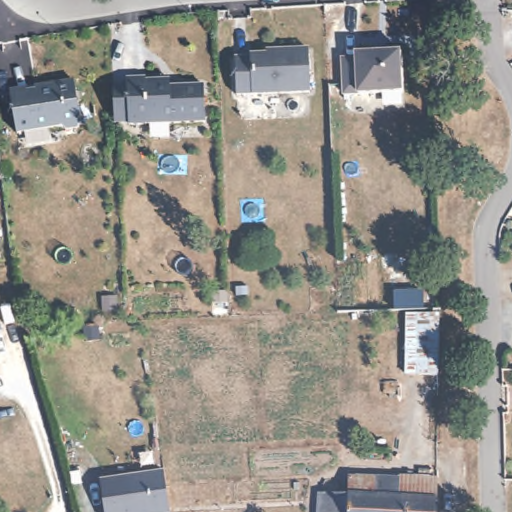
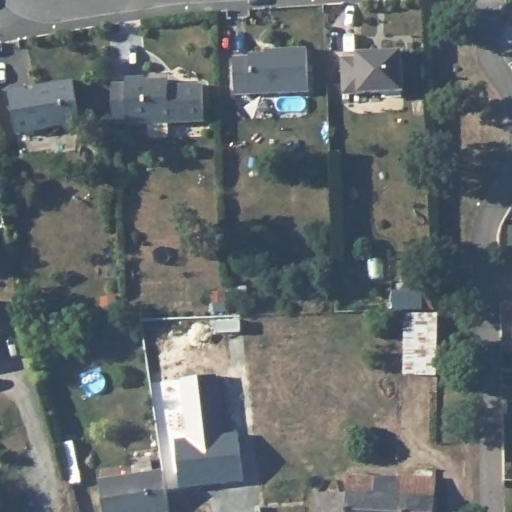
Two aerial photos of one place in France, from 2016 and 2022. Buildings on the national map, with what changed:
unchanged [(280,48),(280,45),(311,43),(314,86),(276,89),(276,88),(240,90),(238,53),(253,51),(252,50),(280,48)]
unchanged [(405,46),(407,87),(347,90),(346,53),(361,52),(360,49),(405,46)]
unchanged [(130,75),(149,74),(149,78),(166,77),(166,80),(173,80),(173,84),(207,83),(208,119),(132,123),(132,119),(118,119),(117,81),(130,80),(130,75)]
unchanged [(78,78),(84,121),(82,125),(69,127),(66,124),(20,131),(14,88),(30,86),(31,89),(39,88),(39,84),(78,78)]
unchanged [(433,375),(399,373),(400,316),(435,315),(433,375)]
unchanged [(0,333),(0,319),(4,332),(0,333)]
new [(176,439),(188,438),(181,379),(217,376),(224,435),(240,434),(245,481),(181,487),(176,439)]
unchanged [(165,470),(171,511),(165,512),(107,512),(102,479),(165,470)]
unchanged [(390,478),(391,474),(430,474),(429,512),(308,512),(309,492),(335,493),(336,476),(390,478)]

